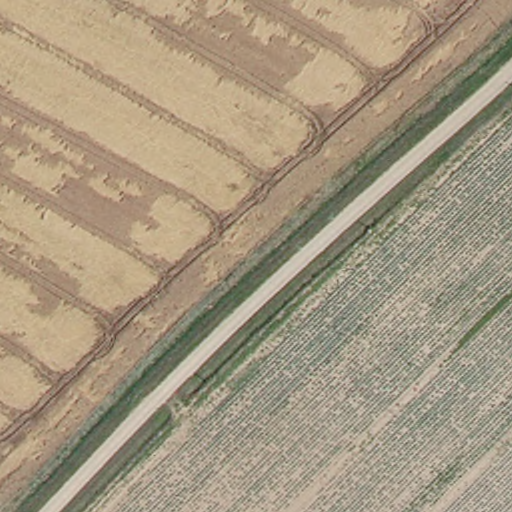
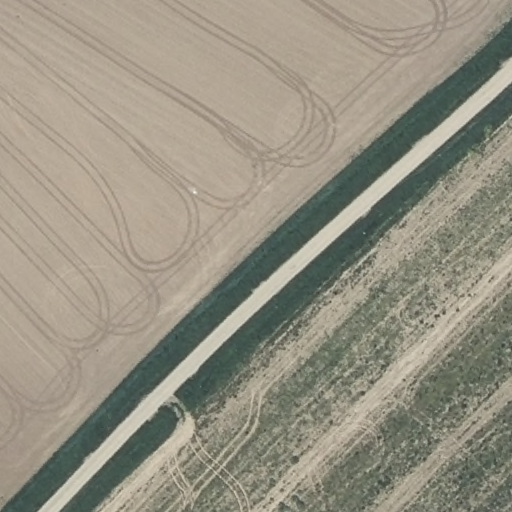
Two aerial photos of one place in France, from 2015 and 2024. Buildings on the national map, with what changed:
[]

